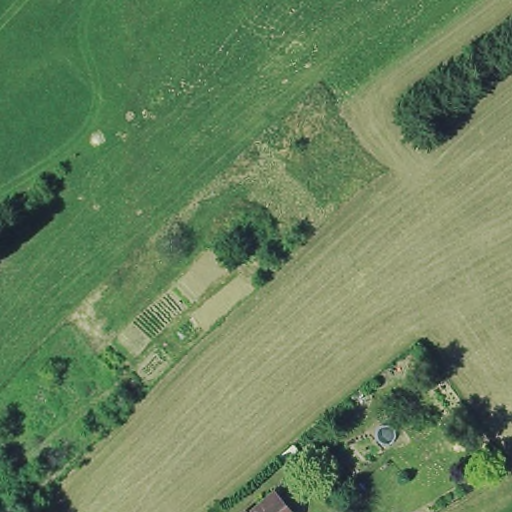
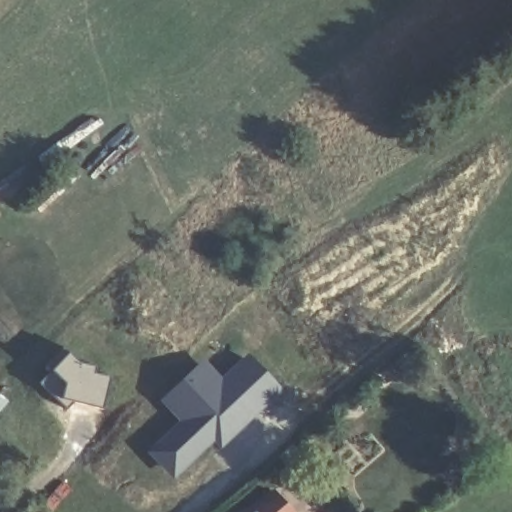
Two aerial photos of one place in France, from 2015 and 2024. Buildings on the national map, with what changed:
new [(68,351),(80,361),(94,365),(92,370),(109,375),(101,409),(58,399),(49,393),(37,382),(68,351)]
new [(175,420),(157,400),(205,355),(221,375),(247,351),(285,391),(220,450),(212,442),(173,480),(144,450),(175,420)]
unchanged [(295,512),(260,512),(280,495),(295,512)]

